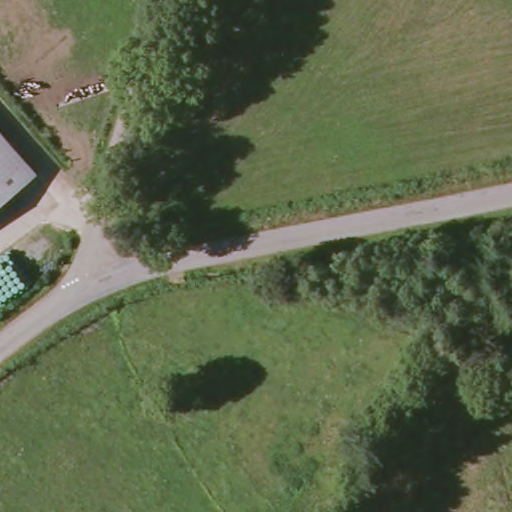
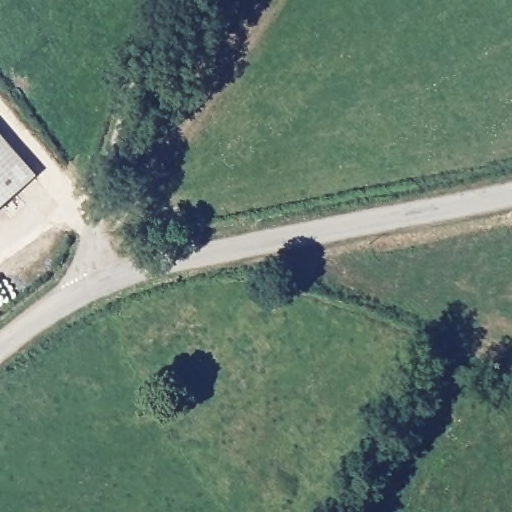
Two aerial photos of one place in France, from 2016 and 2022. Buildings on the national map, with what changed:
unchanged [(31,179),(0,203),(0,140),(31,179)]

